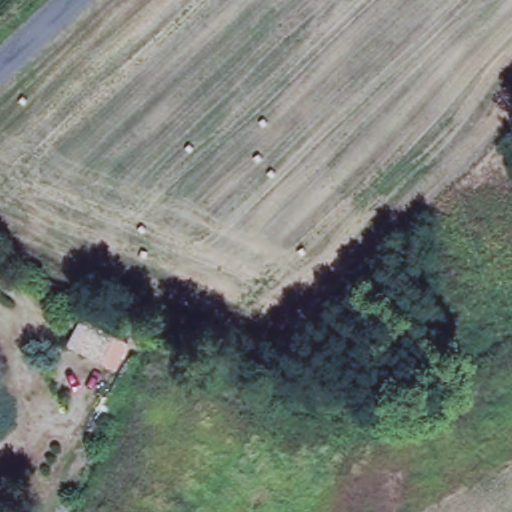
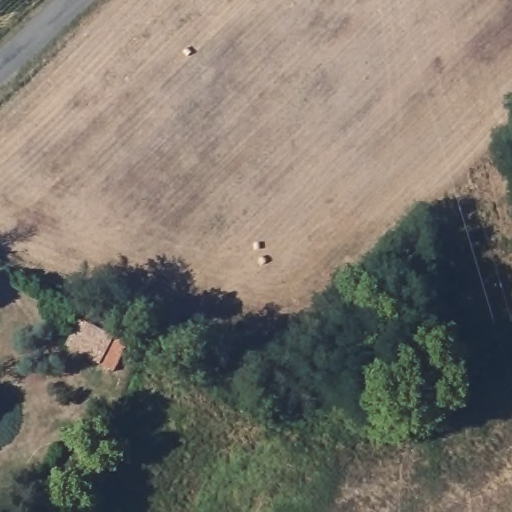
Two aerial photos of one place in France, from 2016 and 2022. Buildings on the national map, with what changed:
unchanged [(106,357),(57,335),(70,307),(119,328),(106,357)]

